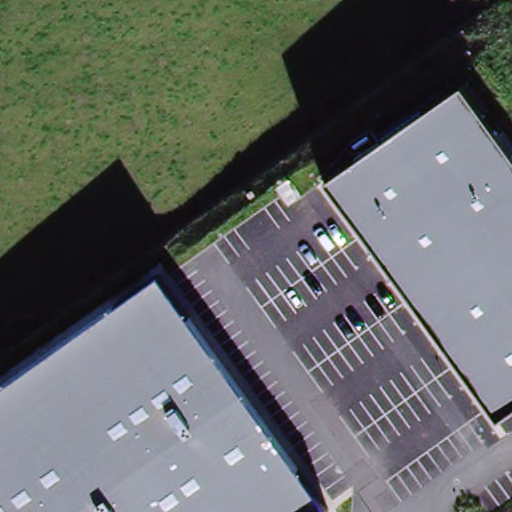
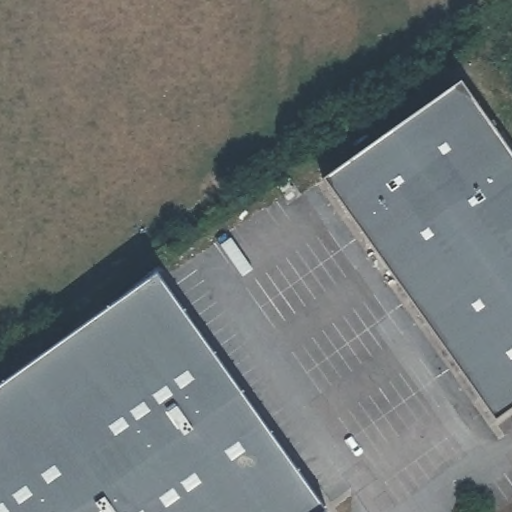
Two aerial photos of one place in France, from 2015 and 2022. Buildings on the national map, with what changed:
unchanged [(512,155),(512,410),(496,421),(325,180),(462,83),(512,155)]
unchanged [(326,512),(0,512),(0,390),(160,275),(326,512)]

